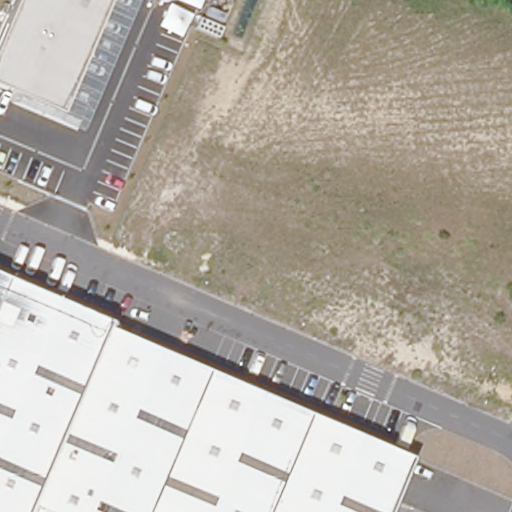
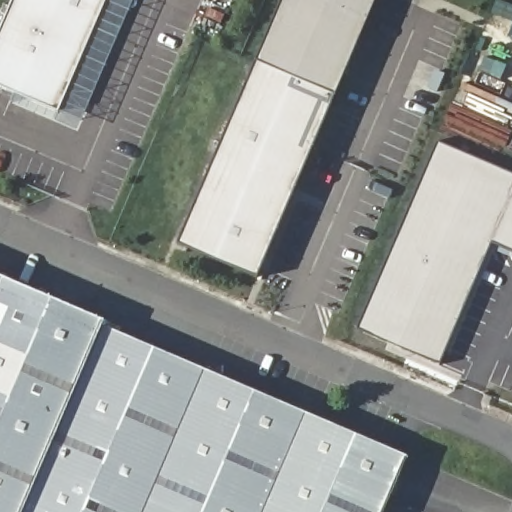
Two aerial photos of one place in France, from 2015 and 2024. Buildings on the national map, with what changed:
unchanged [(79,131),(12,102),(15,96),(15,92),(0,86),(0,33),(14,0),(133,0),(79,131)]
new [(178,243),(283,0),(376,0),(257,276),(178,243)]
new [(437,139),(512,171),(512,251),(490,241),(439,358),(357,322),(437,139)]
unchanged [(391,512),(0,512),(0,286),(412,463),(391,512)]

